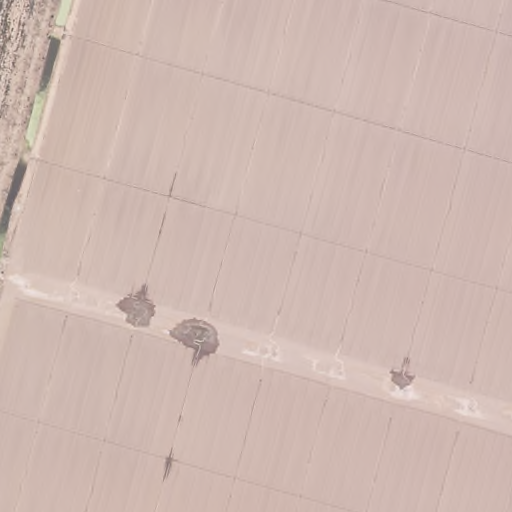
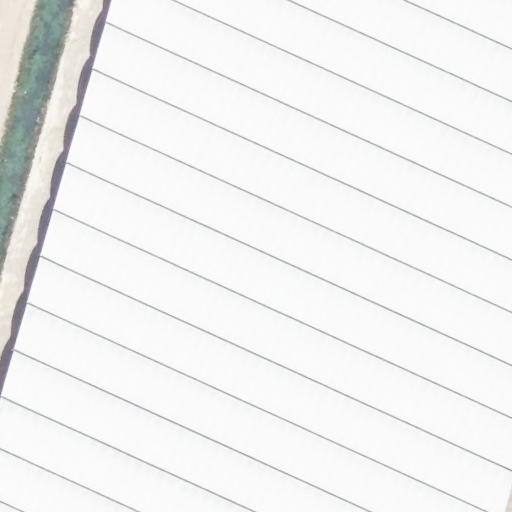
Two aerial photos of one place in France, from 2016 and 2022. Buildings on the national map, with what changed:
new [(0,512),(0,391),(109,0),(512,0),(512,480),(503,512),(0,512)]

